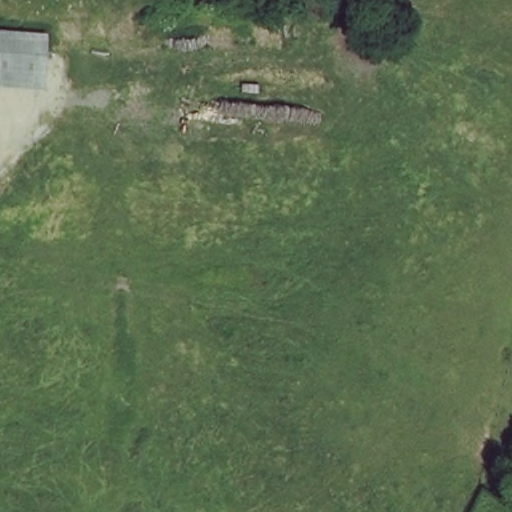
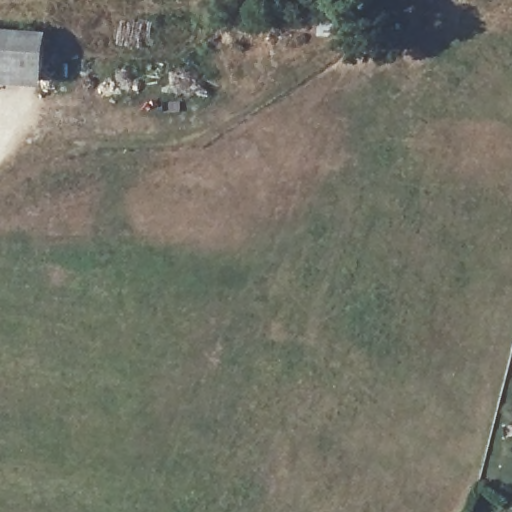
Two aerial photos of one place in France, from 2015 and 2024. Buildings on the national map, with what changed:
unchanged [(0,80),(0,40),(38,44),(39,47),(35,84),(0,80)]

